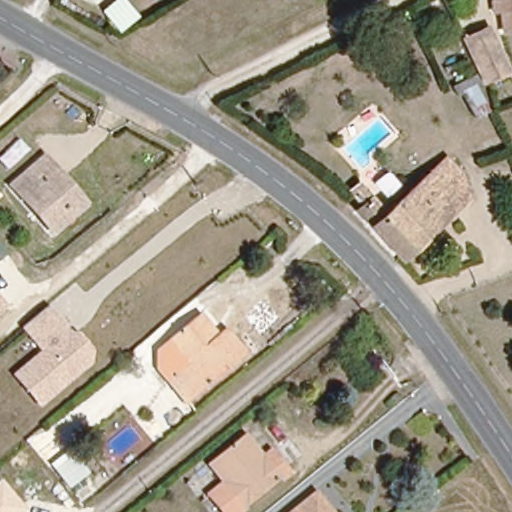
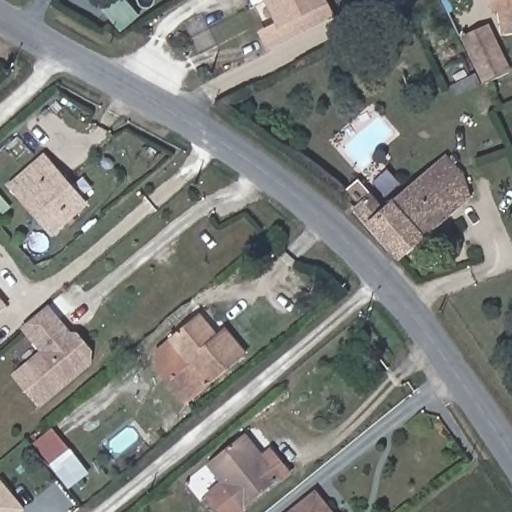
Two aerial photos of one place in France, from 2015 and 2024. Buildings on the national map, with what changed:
new [(121,0),(125,0),(140,17),(122,31),(106,11),(121,0)]
new [(330,4),(335,17),(268,50),(259,30),(275,23),(264,0),(328,0),(330,4)]
unchanged [(506,1),(506,0),(512,0),(512,32),(510,32),(508,13),(498,14),(497,2),(506,1)]
unchanged [(466,40),(489,29),(510,76),(487,84),(466,40)]
unchanged [(480,84),(460,94),(456,86),(475,76),(480,84)]
unchanged [(11,186),(43,158),(84,205),(52,233),(11,186)]
unchanged [(377,197),(391,213),(451,159),(469,177),(475,196),(404,257),(363,211),(377,197)]
unchanged [(0,313),(0,299),(7,307),(0,313)]
unchanged [(25,329),(50,306),(70,334),(75,332),(93,353),(92,365),(40,409),(14,374),(40,351),(25,329)]
unchanged [(175,334),(200,314),(217,335),(228,325),(249,350),(202,389),(185,369),(197,360),(175,334)]
unchanged [(185,345),(197,360),(185,369),(202,389),(182,405),(154,370),(155,349),(175,334),(185,345)]
unchanged [(243,435),(262,459),(270,452),(287,473),(278,479),(238,512),(221,512),(206,493),(221,480),(208,463),(243,435)]
unchanged [(62,465),(70,459),(80,471),(72,477),(62,465)]
unchanged [(0,512),(0,482),(24,510),(22,512),(0,512)]
unchanged [(329,512),(294,512),(315,494),(329,512)]

